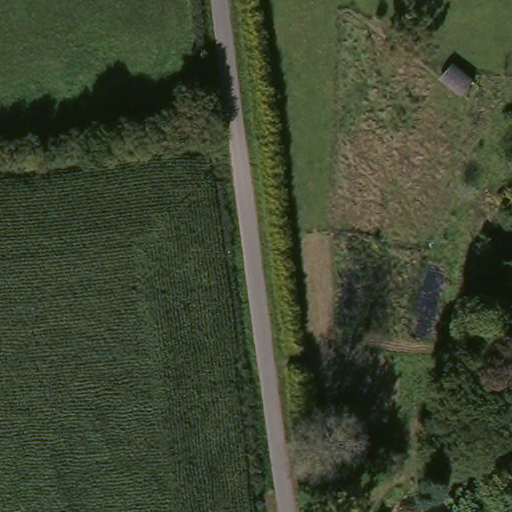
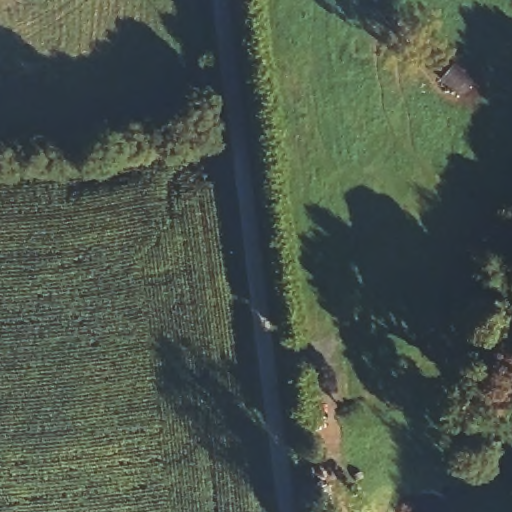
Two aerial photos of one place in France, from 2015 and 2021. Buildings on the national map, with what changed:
unchanged [(471,84),(458,100),(436,83),(448,65),(471,84)]

